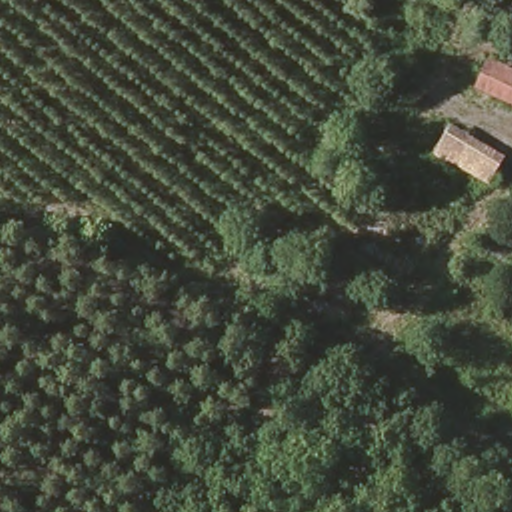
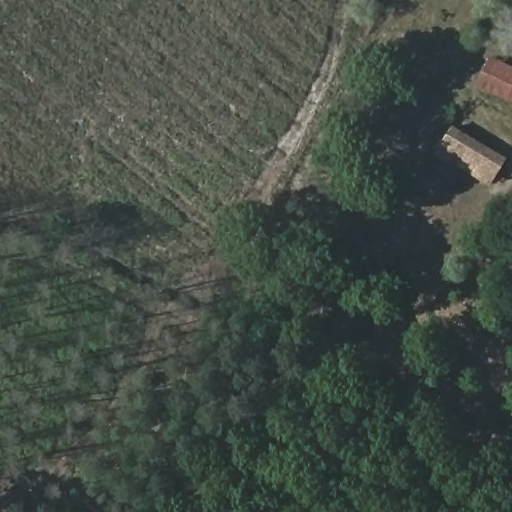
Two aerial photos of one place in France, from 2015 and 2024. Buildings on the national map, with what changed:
unchanged [(494,63),(512,70),(512,106),(482,94),(494,63)]
unchanged [(507,157),(489,187),(450,160),(446,163),(435,155),(452,125),(507,157)]

